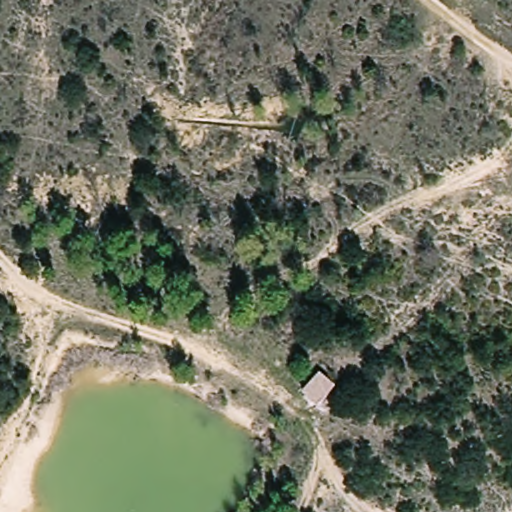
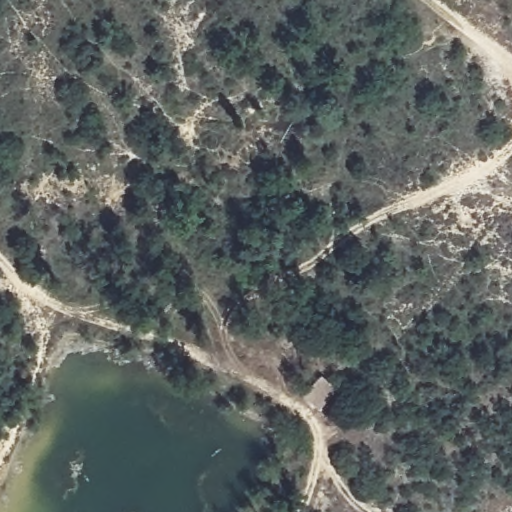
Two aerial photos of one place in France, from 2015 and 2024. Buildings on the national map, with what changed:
unchanged [(318,406),(305,393),(322,372),(339,386),(318,406)]

